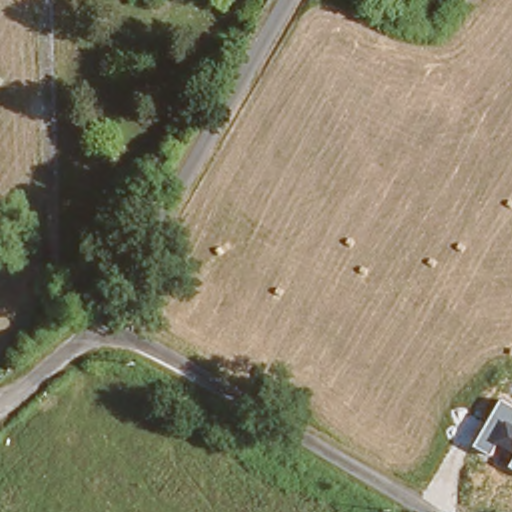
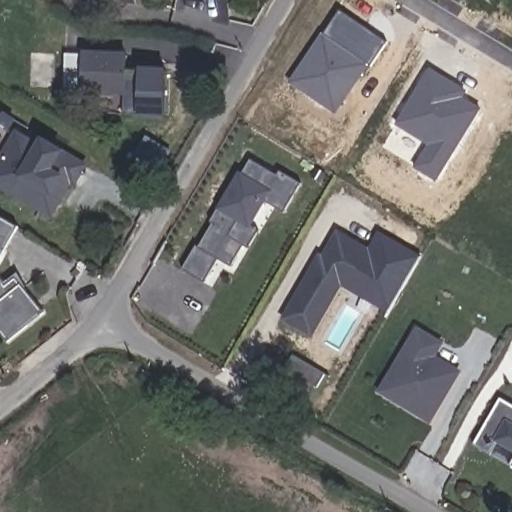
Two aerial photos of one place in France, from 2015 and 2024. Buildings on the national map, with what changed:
demolished [(390,0),(389,2),(384,0),(390,0)]
new [(371,66),(370,65),(336,114),(289,83),(321,33),(325,34),(340,11),(388,42),(371,66)]
new [(165,114),(125,113),(125,95),(82,94),(82,51),(127,52),(126,69),(166,71),(165,114)]
new [(413,168),(427,144),(396,125),(431,68),(468,90),(465,96),(482,108),(437,183),(413,168)]
new [(71,184),(52,219),(0,189),(0,157),(16,129),(38,142),(41,136),(64,149),(86,164),(75,187),(71,184)]
new [(285,213),(267,202),(254,226),(259,230),(249,249),(244,246),(231,267),(219,260),(205,283),(182,269),(195,247),(200,248),(214,224),(210,223),(239,171),(243,173),(250,160),(278,175),(280,172),(302,184),(285,213)]
new [(0,216),(18,227),(0,257),(0,216)]
new [(313,339),(281,319),(320,252),(323,254),(338,229),(391,261),(367,301),(342,286),(313,339)]
new [(377,230),(421,254),(386,318),(379,314),(381,309),(367,301),(391,261),(367,247),(377,230)]
new [(17,273),(26,289),(42,313),(7,342),(0,332),(0,280),(2,284),(17,273)]
new [(437,356),(462,371),(432,424),(377,392),(417,326),(445,343),(437,356)]
unchanged [(501,444),(493,457),(476,447),(504,399),(512,404),(512,451),(501,444)]
unchanged [(511,467),(512,465),(512,467),(511,467)]

